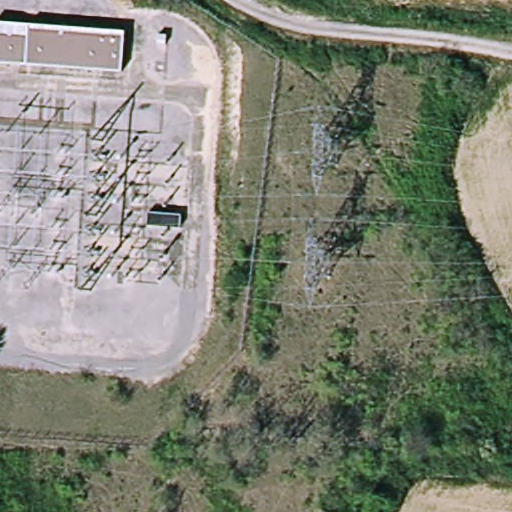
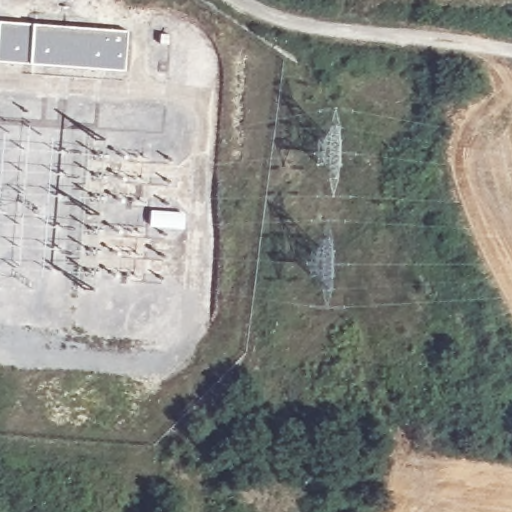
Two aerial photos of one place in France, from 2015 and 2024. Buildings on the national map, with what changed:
unchanged [(125,32),(121,72),(0,66),(0,25),(125,32)]

